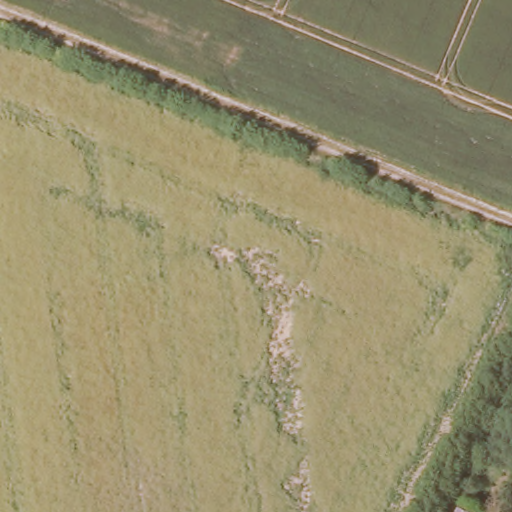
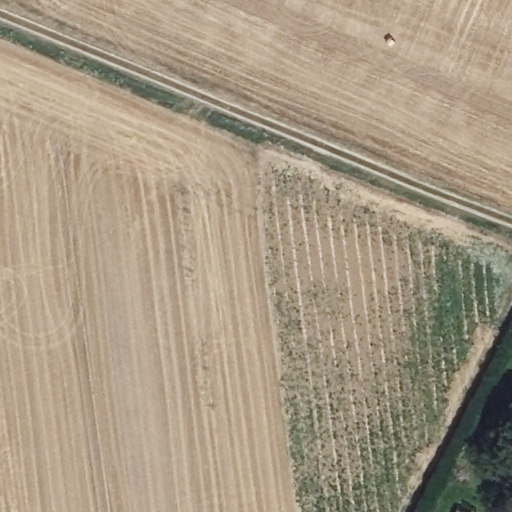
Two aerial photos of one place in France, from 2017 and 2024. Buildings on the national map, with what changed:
unchanged [(465,512),(457,512),(459,509),(465,512)]

